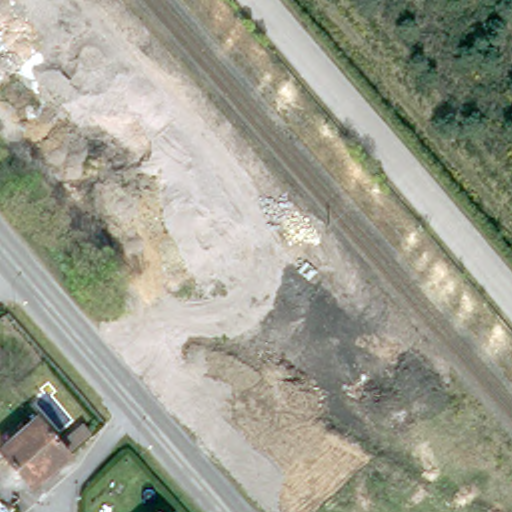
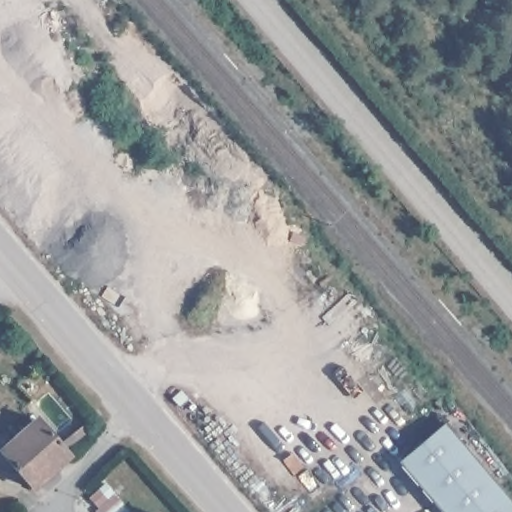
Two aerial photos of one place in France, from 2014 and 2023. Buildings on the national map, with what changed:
unchanged [(37,419),(70,456),(33,489),(0,452),(37,419)]
new [(512,503),(512,512),(439,512),(397,464),(443,423),(512,503)]

